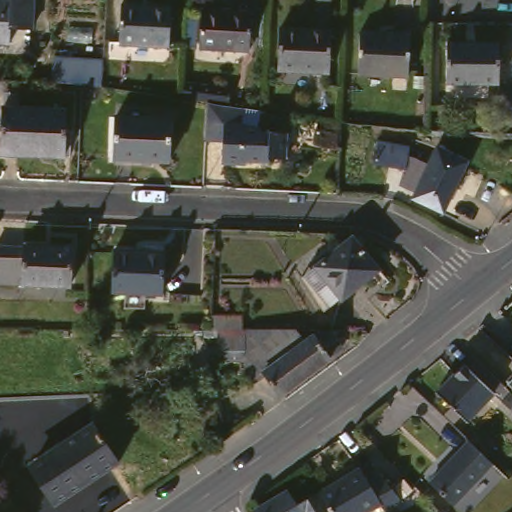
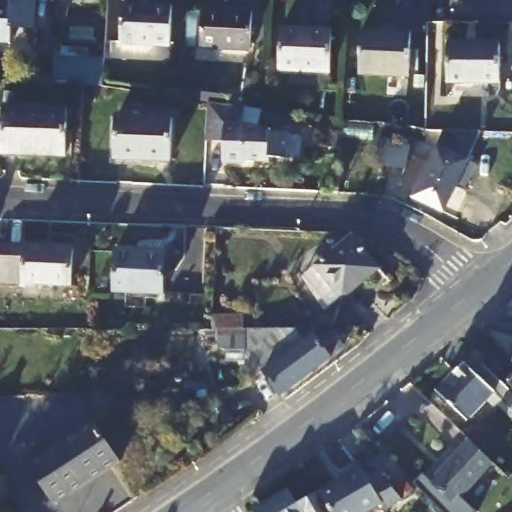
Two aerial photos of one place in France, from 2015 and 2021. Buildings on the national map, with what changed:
unchanged [(10,47),(0,47),(0,5),(10,5),(11,0),(35,0),(34,33),(25,32),(11,32),(10,47)]
unchanged [(122,4),(172,6),(170,46),(120,44),(122,4)]
unchanged [(207,10),(256,12),(255,49),(205,47),(207,10)]
unchanged [(292,27),(341,30),(339,72),(290,70),(292,27)]
unchanged [(371,32),(420,33),(419,75),(370,73),(371,32)]
unchanged [(452,42),(505,43),(505,82),(451,82),(452,42)]
unchanged [(106,56),(105,89),(57,88),(60,56),(106,56)]
unchanged [(235,86),(232,104),(187,99),(188,81),(235,86)]
unchanged [(212,103),(248,108),(246,123),(268,126),(267,130),(293,131),(291,156),(275,155),(275,164),(250,163),(250,165),(226,164),(229,143),(211,142),(211,135),(212,103)]
unchanged [(15,105),(77,109),(75,156),(12,153),(15,105)]
unchanged [(122,114),(176,117),(175,160),(121,158),(122,114)]
unchanged [(318,129),(338,135),(335,147),(315,143),(318,129)]
unchanged [(380,141),(410,146),(406,168),(376,162),(380,141)]
unchanged [(419,198),(443,148),(473,161),(448,212),(419,198)]
unchanged [(356,237),(383,270),(346,300),(344,298),(332,308),(307,278),(356,237)]
unchanged [(32,246),(33,244),(77,247),(76,287),(0,283),(0,263),(1,244),(32,246)]
unchanged [(120,249),(170,251),(168,296),(117,293),(120,249)]
unchanged [(310,378),(285,395),(268,372),(256,381),(250,374),(250,349),(250,345),(224,346),(223,330),(216,330),(217,315),(247,315),(247,330),(250,330),(275,330),(310,378)]
unchanged [(302,330),(310,342),(326,330),(332,330),(336,331),(348,347),(335,356),(337,358),(310,378),(275,330),(302,330)]
unchanged [(473,355),(481,346),(499,364),(490,372),(473,355)]
unchanged [(490,373),(512,395),(512,414),(495,398),(468,426),(450,409),(437,397),(466,368),(467,369),(475,360),(490,373)]
unchanged [(510,373),(512,370),(512,375),(510,373)]
unchanged [(508,385),(512,381),(512,389),(508,385)]
unchanged [(40,471),(104,430),(125,463),(61,504),(40,471)]
unchanged [(488,473),(456,504),(433,482),(475,441),(512,477),(512,478),(501,485),(488,473)]
unchanged [(374,480),(387,473),(405,498),(390,507),(387,504),(373,512),(336,512),(325,491),(366,467),(374,480)]
unchanged [(260,512),(259,509),(294,490),(301,503),(325,491),(336,512),(260,512)]

